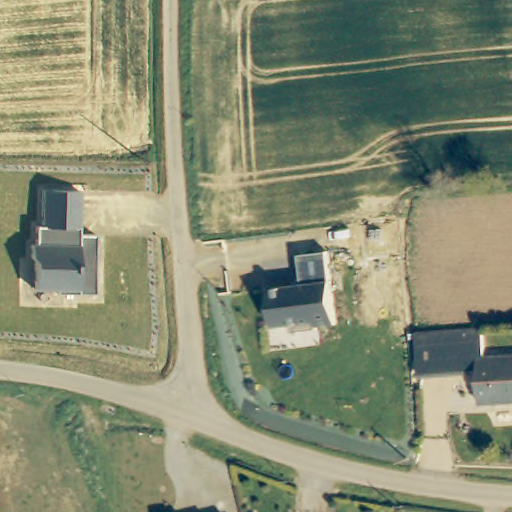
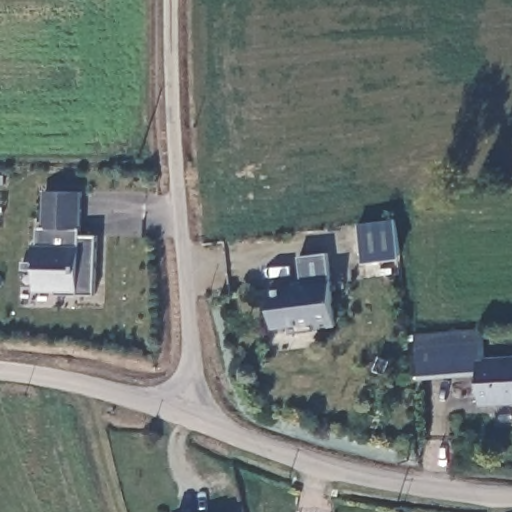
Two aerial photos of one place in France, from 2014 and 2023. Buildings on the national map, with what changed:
unchanged [(89,197),(88,241),(105,241),(104,301),(86,300),(86,296),(43,295),(44,267),(40,264),(40,251),(44,251),(45,232),(51,232),(51,197),(89,197)]
new [(360,223),(395,219),(401,258),(363,262),(360,223)]
unchanged [(337,254),(348,326),(329,328),(329,332),(304,335),(303,327),(286,330),(280,292),(313,287),(308,257),(337,254)]
unchanged [(484,330),(486,362),(512,360),(512,404),(482,407),(476,371),(419,376),(416,335),(484,330)]

